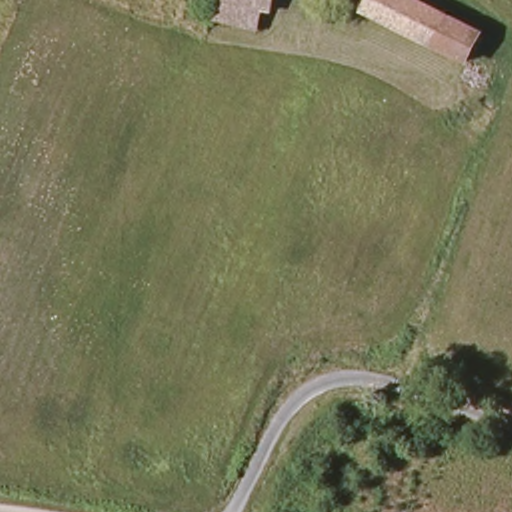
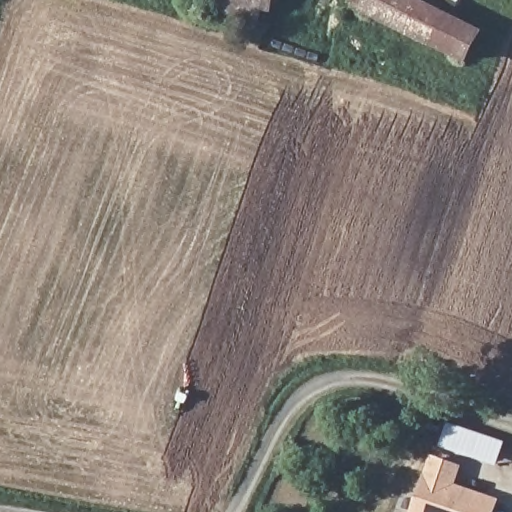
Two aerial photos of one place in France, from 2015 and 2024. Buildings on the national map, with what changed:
unchanged [(218,17),(222,0),(277,0),(272,27),(218,17)]
unchanged [(476,64),(360,6),(363,0),(410,0),(490,38),(476,64)]
new [(442,446),(450,422),(506,441),(498,465),(442,446)]
new [(431,456),(463,466),(457,484),(502,499),(497,512),(412,512),(431,456)]

